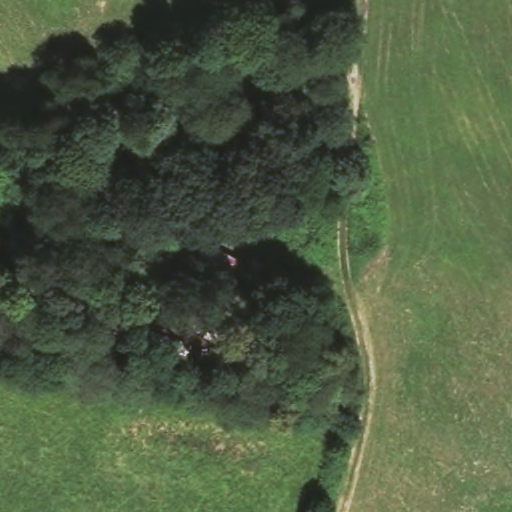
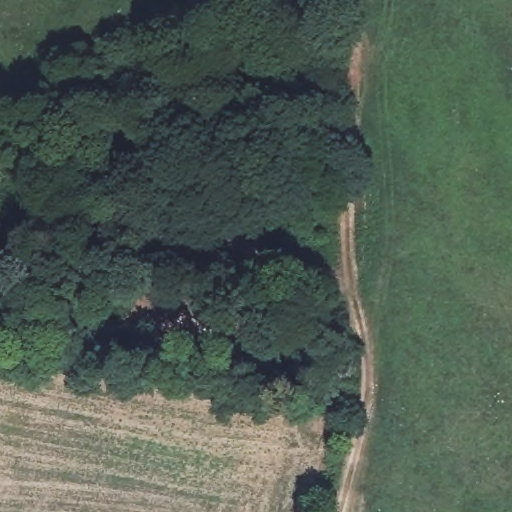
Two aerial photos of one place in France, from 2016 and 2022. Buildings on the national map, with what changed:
unchanged [(236,253),(224,274),(192,257),(203,237),(236,253)]

